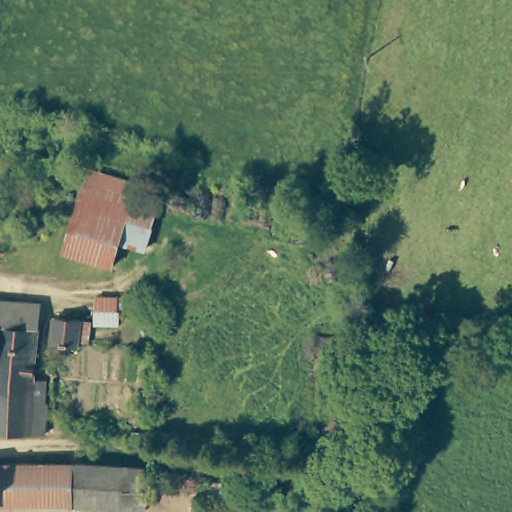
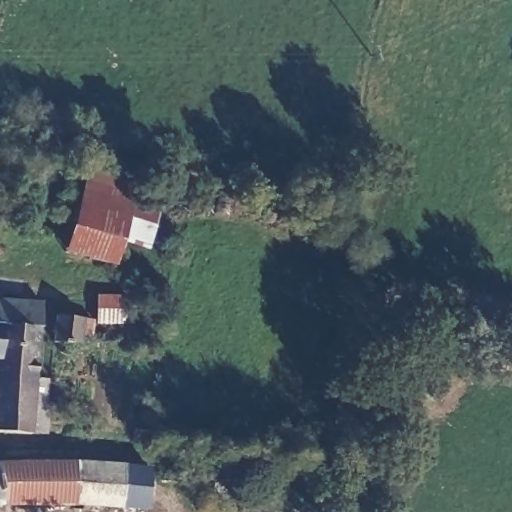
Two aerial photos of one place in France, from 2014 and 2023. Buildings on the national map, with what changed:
unchanged [(137,184),(120,241),(112,267),(87,260),(60,251),(87,169),(94,171),(137,184)]
unchanged [(162,191),(145,249),(120,241),(137,184),(162,191)]
unchanged [(35,302),(34,383),(47,387),(43,436),(0,431),(0,300),(35,302)]
unchanged [(78,314),(75,349),(52,346),(56,312),(78,314)]
unchanged [(66,457),(149,469),(147,507),(75,502),(6,501),(0,502),(0,466),(11,465),(26,460),(54,457),(66,457)]

